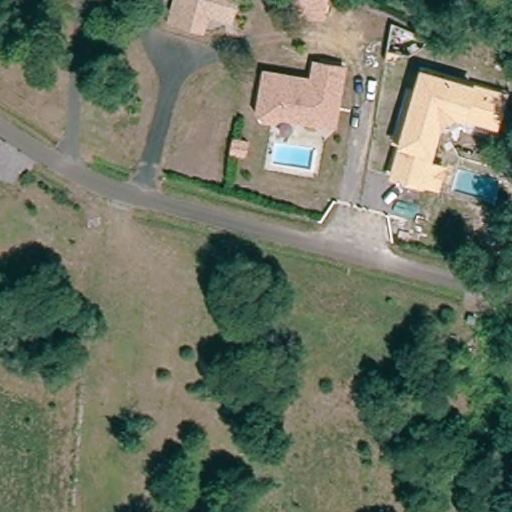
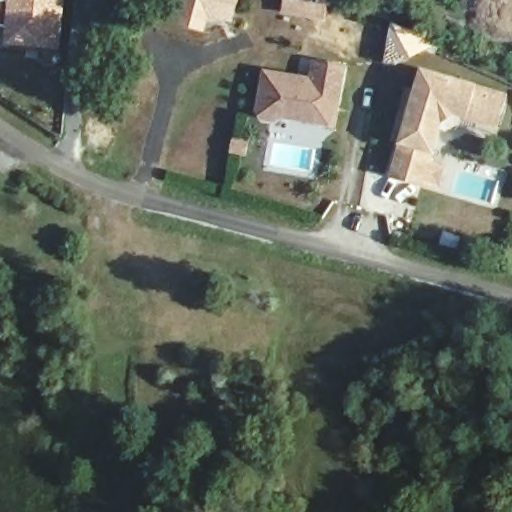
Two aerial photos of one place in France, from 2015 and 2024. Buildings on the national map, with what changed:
new [(7,0),(66,0),(61,53),(2,48),(7,0)]
unchanged [(171,30),(180,0),(237,0),(240,1),(232,30),(209,23),(207,28),(204,39),(171,30)]
unchanged [(286,13),(287,0),(329,0),(326,23),(286,13)]
new [(388,24),(423,41),(435,46),(430,54),(420,49),(405,57),(393,55),(391,64),(381,63),(382,53),(388,24)]
unchanged [(281,119),(277,125),(261,122),(256,111),(263,69),(311,75),(314,61),(350,66),(337,130),(281,119)]
unchanged [(399,145),(392,143),(407,88),(415,92),(421,68),(478,85),(508,95),(498,129),(464,121),(456,117),(443,125),(436,153),(434,161),(446,166),(440,192),(390,179),(399,145)]

